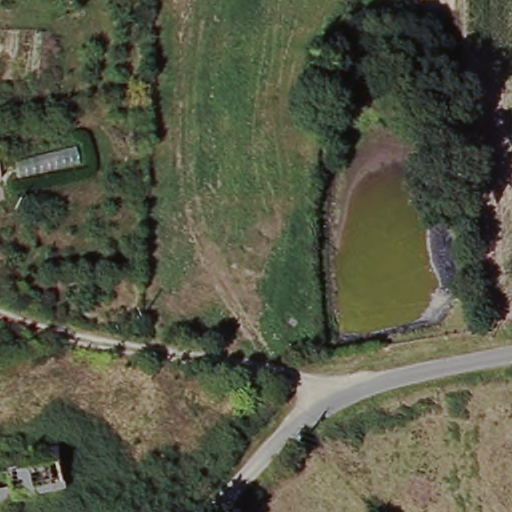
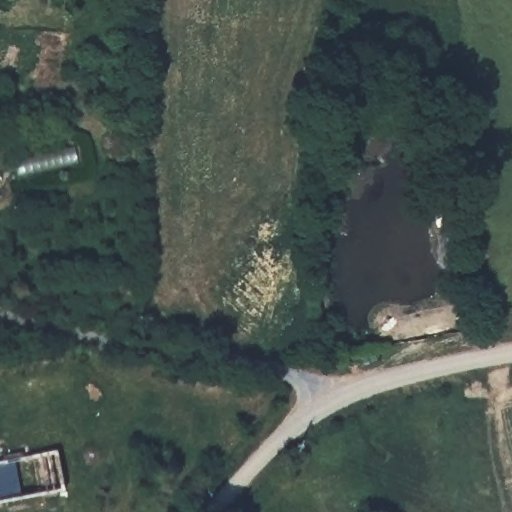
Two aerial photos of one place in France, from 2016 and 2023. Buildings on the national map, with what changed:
unchanged [(0,178),(0,159),(4,177),(0,178)]
unchanged [(62,496),(0,503),(0,470),(59,465),(62,496)]

